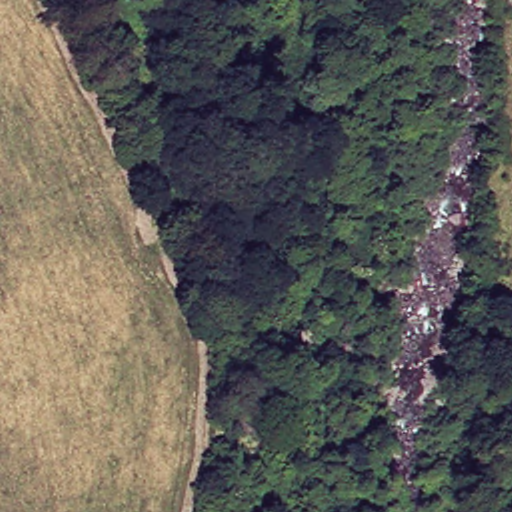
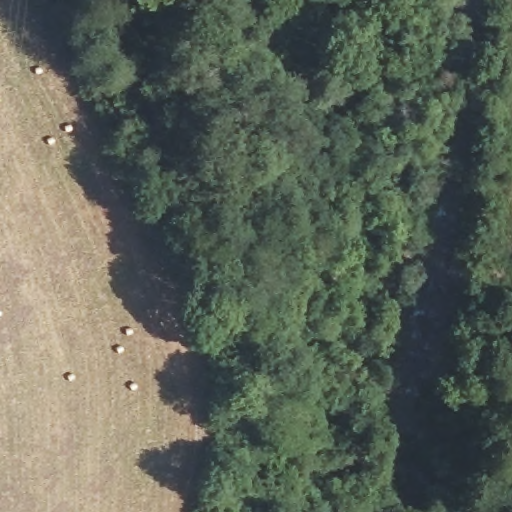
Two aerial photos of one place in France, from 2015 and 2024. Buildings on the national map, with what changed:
unchanged [(360,26),(362,49),(338,50),(336,28),(360,26)]

